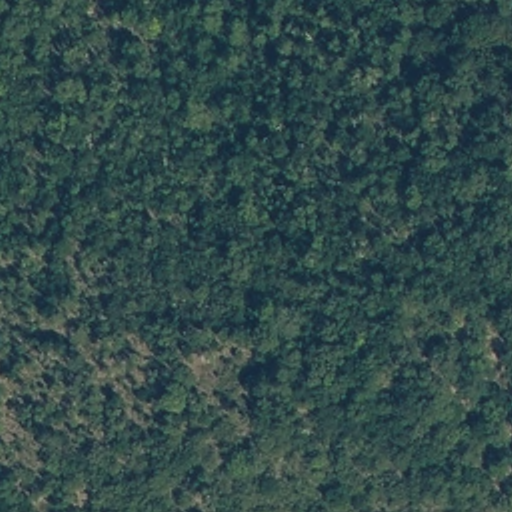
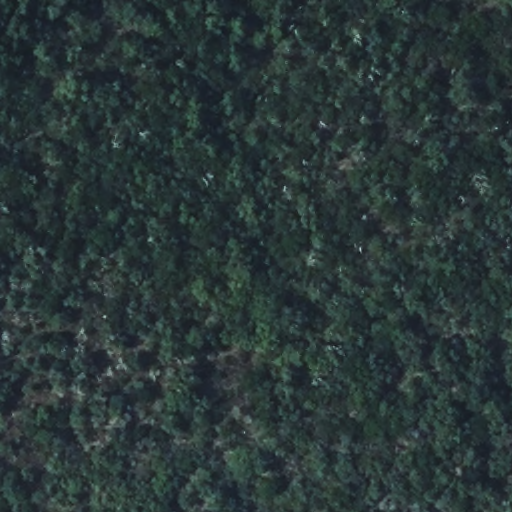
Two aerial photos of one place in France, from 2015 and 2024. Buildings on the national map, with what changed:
[]

